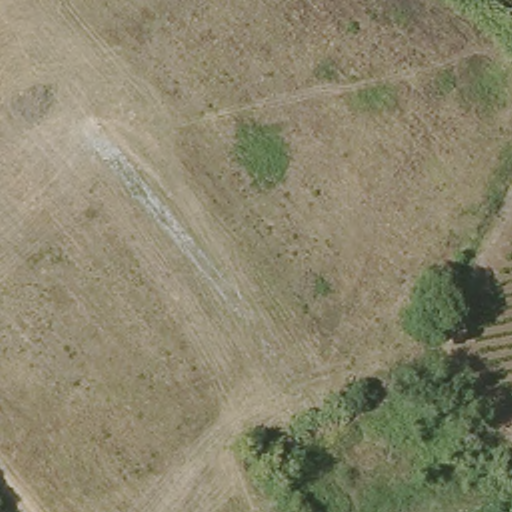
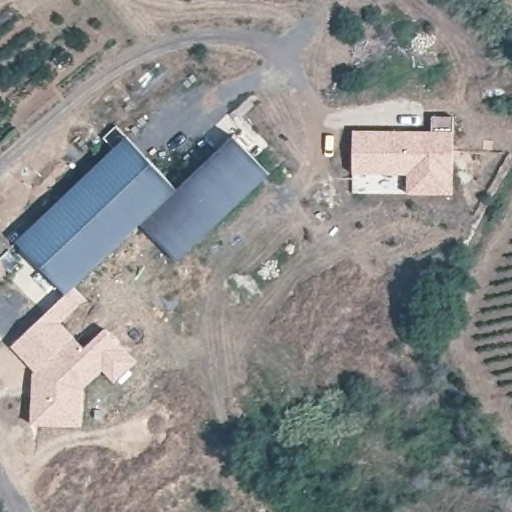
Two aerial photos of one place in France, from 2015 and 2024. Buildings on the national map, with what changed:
new [(352,130),(430,130),(431,115),(452,115),(454,194),(406,194),(405,175),(352,174),(352,130)]
new [(127,137),(175,190),(232,136),(268,175),(176,260),(142,222),(64,294),(17,241),(127,137)]
new [(62,322),(84,348),(105,329),(137,362),(114,383),(103,372),(83,390),(82,427),(31,425),(32,373),(34,371),(11,347),(66,295),(64,294),(73,286),(86,300),(62,322)]

